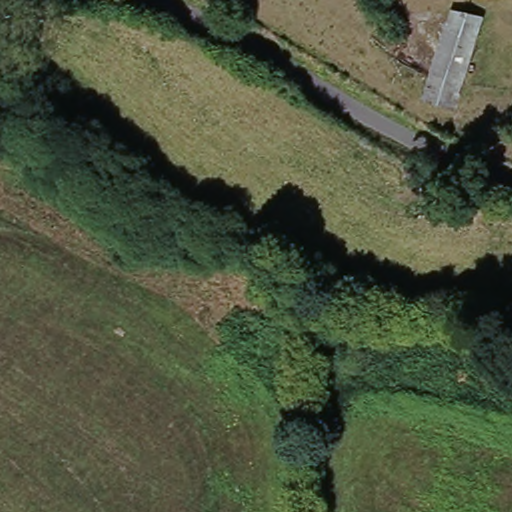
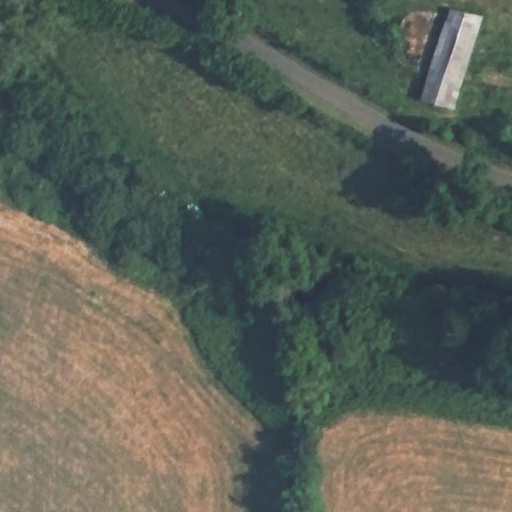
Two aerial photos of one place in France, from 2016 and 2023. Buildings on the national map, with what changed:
unchanged [(488,19),(458,110),(429,99),(461,9),(488,19)]

